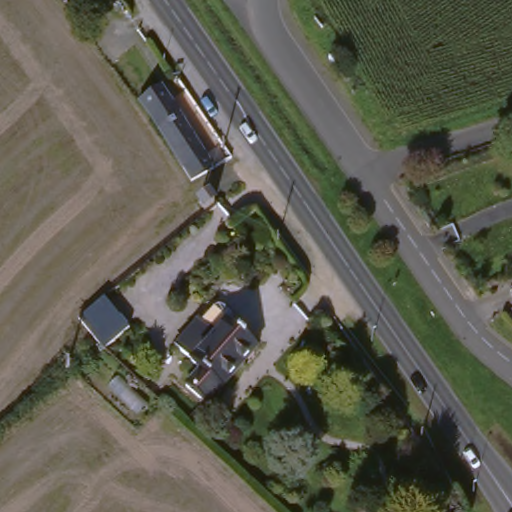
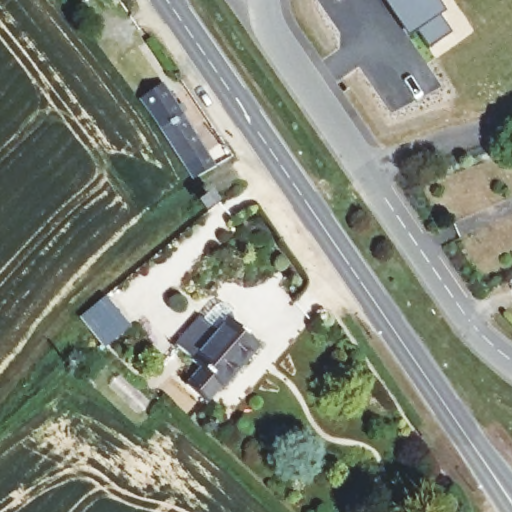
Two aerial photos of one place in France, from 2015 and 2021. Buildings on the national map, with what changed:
new [(387,0),(438,0),(444,10),(439,14),(451,32),(428,47),(416,29),(408,34),(387,0)]
unchanged [(158,135),(162,132),(152,115),(165,107),(206,169),(184,180),(158,135)]
unchanged [(77,324),(99,303),(115,321),(125,332),(103,353),(93,342),(77,324)]
unchanged [(214,401),(209,397),(197,412),(178,395),(190,380),(168,361),(210,313),(256,351),(214,401)]

